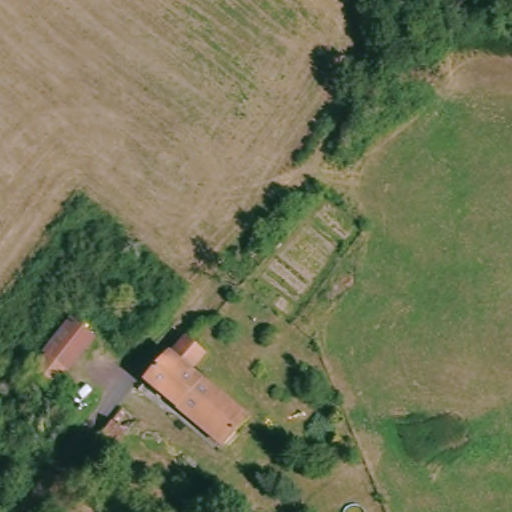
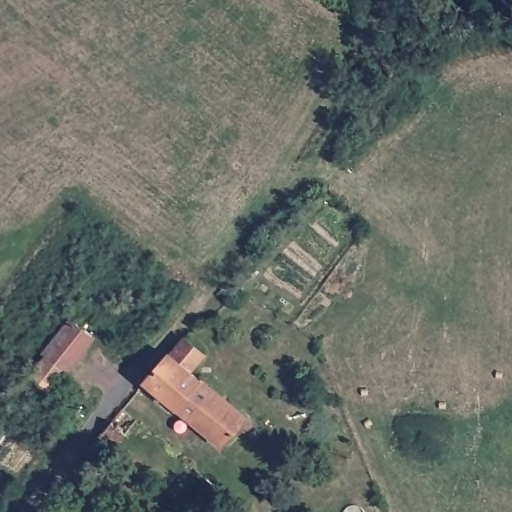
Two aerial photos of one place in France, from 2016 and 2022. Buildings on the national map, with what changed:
unchanged [(39,350),(37,346),(67,311),(92,331),(48,387),(25,369),(39,350)]
unchanged [(239,453),(221,437),(140,371),(162,344),(166,347),(177,332),(181,335),(193,345),(182,359),(244,410),(240,416),(259,432),(239,453)]
unchanged [(127,429),(100,461),(86,449),(112,416),(127,429)]

